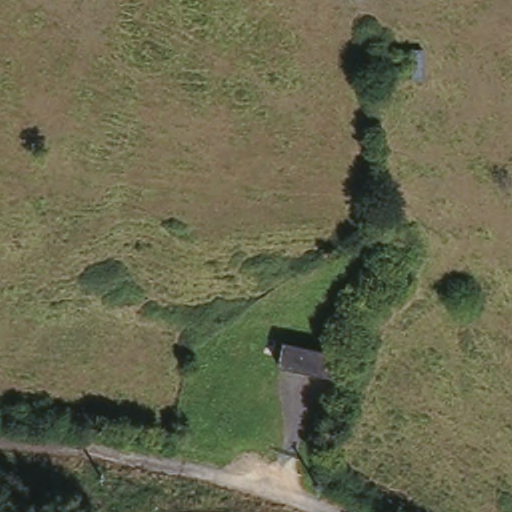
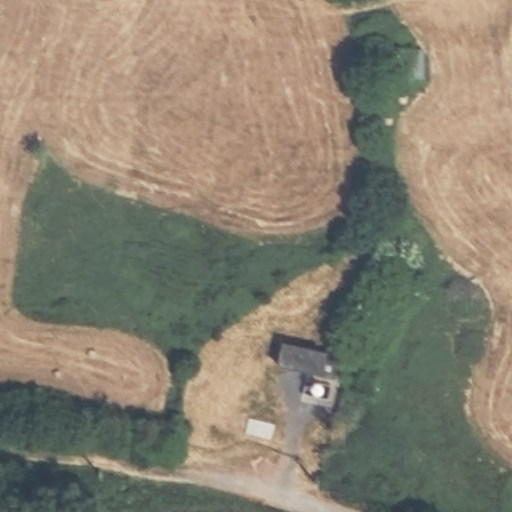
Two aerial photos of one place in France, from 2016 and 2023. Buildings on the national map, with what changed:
unchanged [(418,49),(422,76),(392,79),(391,50),(418,49)]
unchanged [(277,336),(330,347),(325,372),(272,360),(277,336)]

